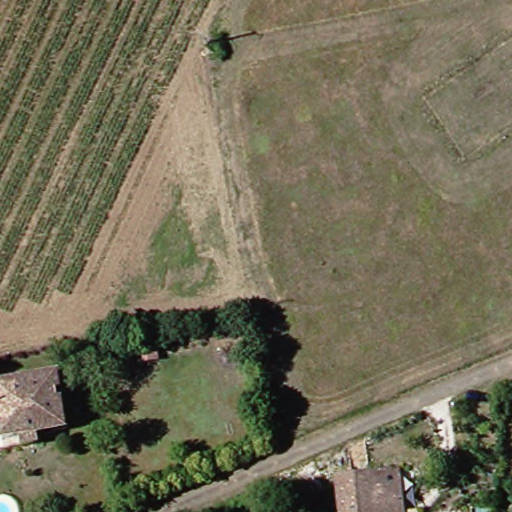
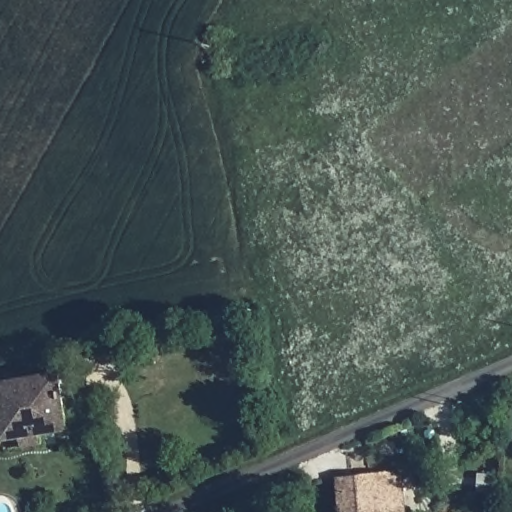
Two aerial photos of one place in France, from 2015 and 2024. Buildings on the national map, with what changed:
unchanged [(0,407),(0,384),(55,377),(65,433),(6,441),(0,407)]
unchanged [(398,472),(402,512),(339,512),(336,478),(398,472)]

